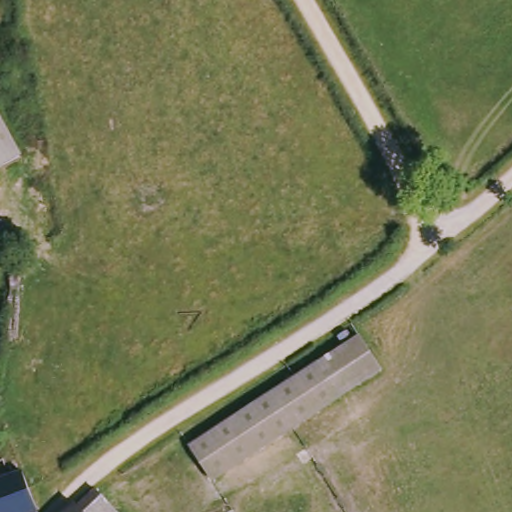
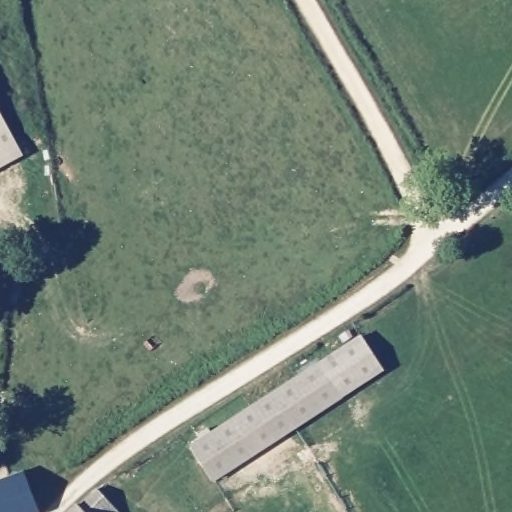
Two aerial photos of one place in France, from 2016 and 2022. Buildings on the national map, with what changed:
unchanged [(21,155),(0,167),(0,115),(21,155)]
unchanged [(366,330),(389,363),(349,391),(325,358),(366,330)]
unchanged [(325,358),(349,391),(223,479),(199,445),(325,358)]
unchanged [(33,468),(49,502),(51,507),(42,512),(0,512),(0,481),(14,476),(33,468)]
unchanged [(81,508),(99,490),(114,507),(118,512),(74,512),(80,506),(81,508)]

